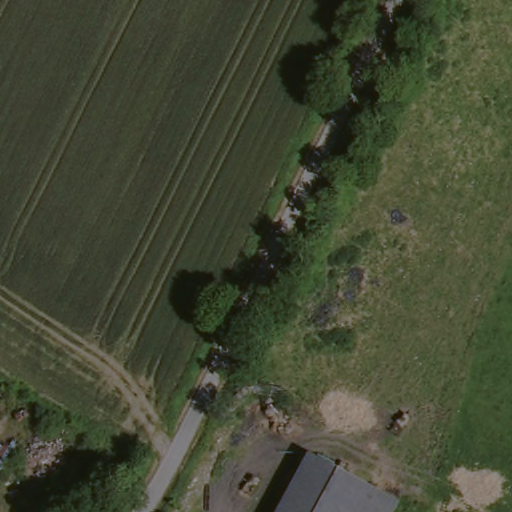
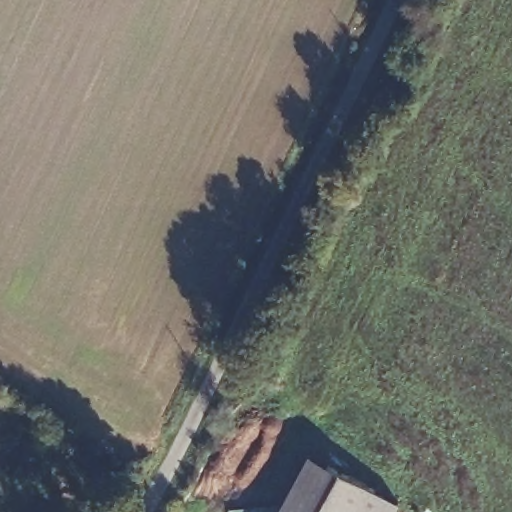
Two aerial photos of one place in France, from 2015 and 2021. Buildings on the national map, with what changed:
unchanged [(272,512),(301,457),(393,505),(389,512),(272,512)]

